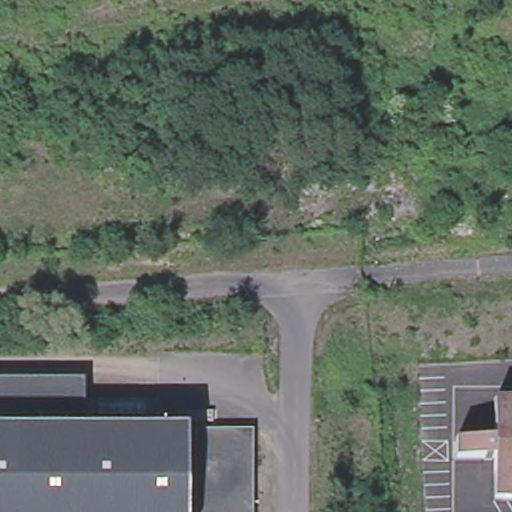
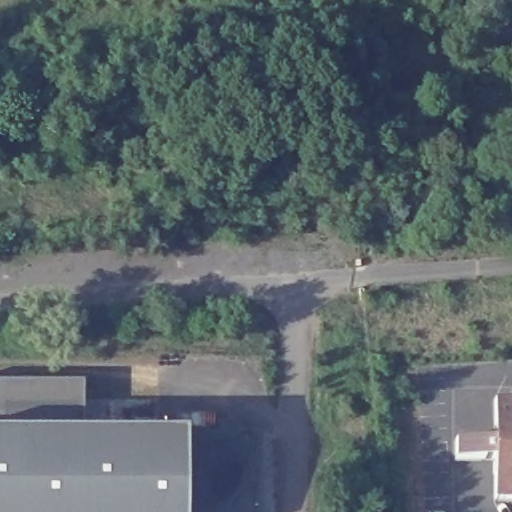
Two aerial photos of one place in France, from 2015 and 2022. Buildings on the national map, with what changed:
unchanged [(82,432),(185,432),(247,435),(249,512),(0,512),(0,383),(83,384),(82,432)]
unchanged [(457,442),(495,442),(495,402),(512,402),(512,501),(495,501),(495,462),(457,462),(457,442)]

